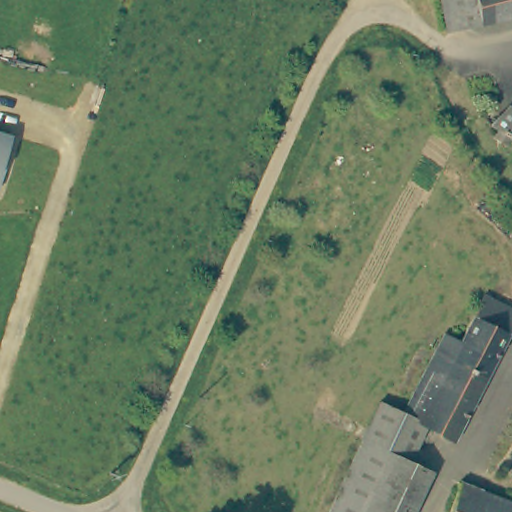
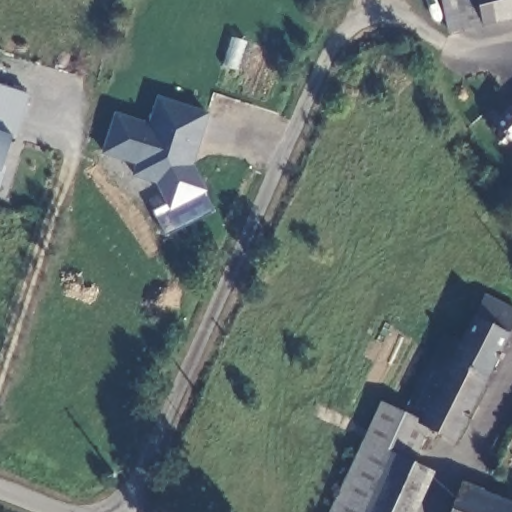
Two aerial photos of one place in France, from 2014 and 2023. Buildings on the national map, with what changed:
unchanged [(447,34),(439,0),(512,0),(512,21),(482,26),(447,34)]
new [(192,162),(206,192),(166,213),(154,184),(130,177),(134,164),(100,154),(112,112),(147,122),(155,97),(210,113),(192,162)]
unchanged [(488,124),(507,105),(512,112),(512,147),(510,149),(488,124)]
unchanged [(12,136),(1,171),(0,174),(0,133),(12,136)]
unchanged [(381,401),(405,411),(445,332),(460,339),(483,294),(512,309),(512,322),(452,440),(427,427),(411,459),(434,470),(415,512),(329,512),(362,440),(381,401)]
unchanged [(512,512),(450,512),(461,482),(481,490),(512,501),(512,512)]

